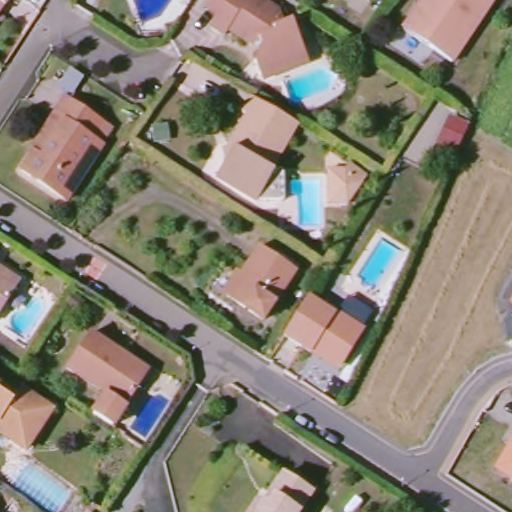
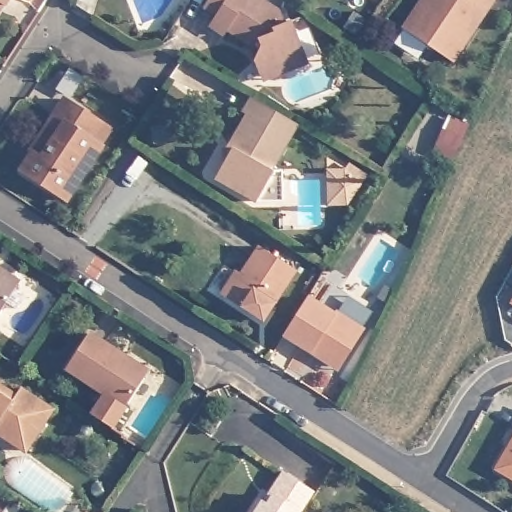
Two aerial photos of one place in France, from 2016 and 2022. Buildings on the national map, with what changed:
unchanged [(15,14),(8,9),(0,21),(0,0),(24,0),(15,14)]
unchanged [(280,12),(287,29),(295,26),(310,67),(290,77),(285,71),(264,82),(256,64),(262,49),(260,44),(251,47),(233,34),(227,37),(213,27),(219,18),(208,8),(213,0),(260,0),(280,12)]
unchanged [(457,60),(414,32),(433,0),(493,0),(457,60)]
unchanged [(260,205),(218,175),(235,151),(231,147),(250,119),(245,114),(255,97),(295,124),(285,139),(290,142),(272,170),(280,176),(260,205)]
unchanged [(21,168),(35,150),(40,154),(65,120),(57,114),(69,100),(105,122),(116,130),(105,146),(66,199),(21,168)]
unchanged [(462,142),(450,164),(432,155),(443,132),(462,142)]
unchanged [(350,169),(365,183),(348,206),(331,206),(331,169),(350,169)]
unchanged [(300,272),(268,322),(229,296),(264,246),(300,272)]
unchanged [(0,317),(0,276),(18,288),(0,317)]
unchanged [(508,302),(512,295),(512,304),(508,302)]
unchanged [(338,317),(340,315),(366,332),(343,367),(340,372),(313,354),(285,337),(308,298),(338,317)]
unchanged [(94,411),(107,391),(69,364),(94,329),(122,348),(151,368),(147,375),(114,425),(94,411)]
unchanged [(20,392),(25,385),(30,389),(57,407),(30,448),(28,447),(24,445),(0,428),(0,378),(8,383),(20,392)]
unchanged [(492,467),(512,435),(512,479),(492,467)]
unchanged [(306,512),(255,512),(261,504),(271,508),(274,502),(272,494),(286,475),(318,494),(306,512)]

